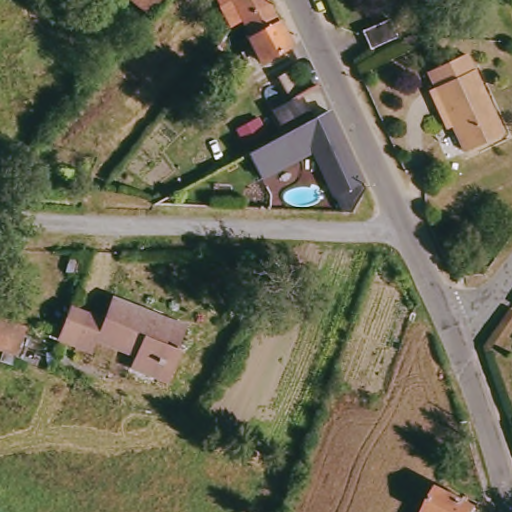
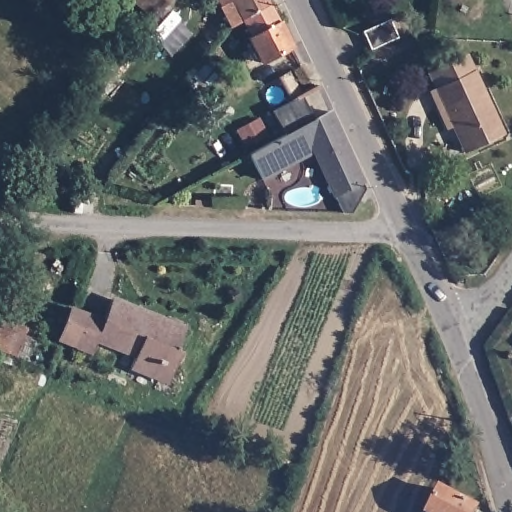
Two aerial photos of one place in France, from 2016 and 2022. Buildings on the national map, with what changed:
unchanged [(163,0),(154,12),(140,0),(163,0)]
unchanged [(235,22),(224,0),(272,0),(248,14),(235,22)]
unchanged [(273,0),(294,42),(265,57),(262,52),(251,57),(247,49),(257,43),(252,32),(256,30),(248,14),(272,0),(273,0)]
unchanged [(388,19),(395,37),(369,50),(361,31),(388,19)]
unchanged [(437,101),(430,86),(433,84),(426,68),(465,51),(502,129),(465,147),(452,120),(447,122),(437,101)]
unchanged [(266,110),(285,100),(273,76),(285,70),(297,94),(295,95),(307,118),(322,110),(365,201),(359,214),(350,213),(317,153),(267,180),(250,150),(280,134),(266,110)]
unchanged [(149,376),(125,366),(130,354),(92,339),(88,351),(70,344),(82,315),(97,321),(106,300),(132,311),(130,315),(153,324),(155,320),(180,330),(172,349),(175,351),(172,359),(162,381),(149,376)]
unchanged [(12,353),(0,349),(0,313),(27,323),(12,353)]
unchanged [(439,478),(475,497),(467,512),(421,512),(439,478)]

